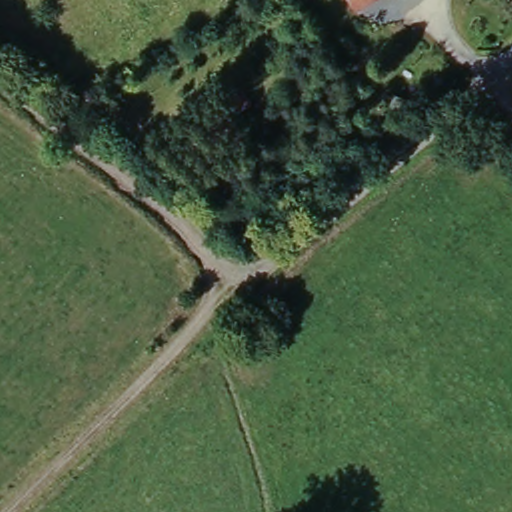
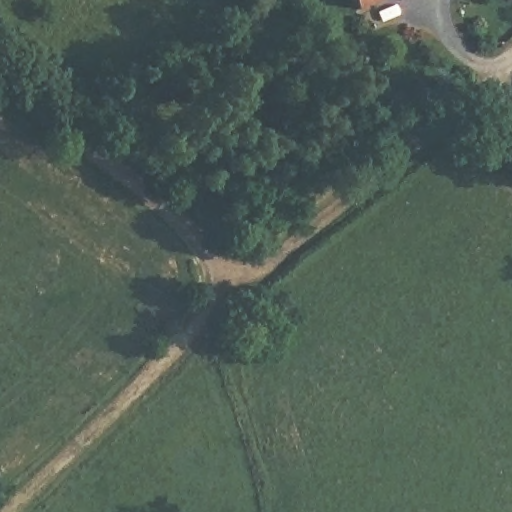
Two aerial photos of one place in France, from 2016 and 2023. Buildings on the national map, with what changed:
unchanged [(332,0),(367,0),(340,15),(332,0)]
unchanged [(237,102),(246,120),(232,129),(222,109),(237,102)]

